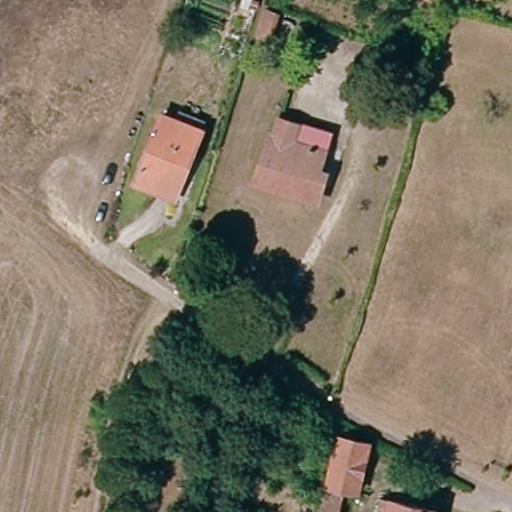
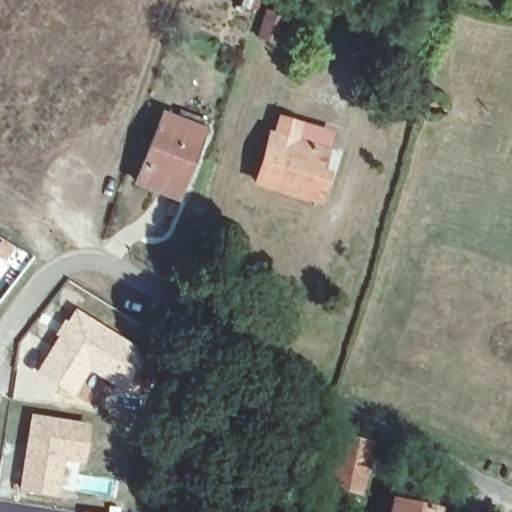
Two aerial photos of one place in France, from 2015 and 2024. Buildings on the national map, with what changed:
unchanged [(265,11),(278,15),(270,41),(258,37),(265,11)]
unchanged [(162,115),(203,131),(174,200),(134,183),(162,115)]
unchanged [(280,120),(329,136),(318,172),(325,175),(317,201),(256,182),(270,136),(274,138),(280,120)]
new [(0,279),(0,257),(10,265),(0,279)]
new [(74,307),(148,355),(133,378),(135,380),(126,396),(89,372),(71,397),(33,371),(74,307)]
new [(29,413),(89,423),(83,463),(64,461),(56,496),(17,490),(29,413)]
unchanged [(339,432),(370,440),(359,488),(328,481),(339,432)]
unchanged [(339,512),(318,512),(324,483),(345,487),(339,512)]
unchanged [(391,500),(437,510),(436,512),(388,512),(391,500)]
new [(108,506),(120,507),(119,512),(107,512),(108,506)]
new [(83,511),(89,512),(82,512),(83,511)]

